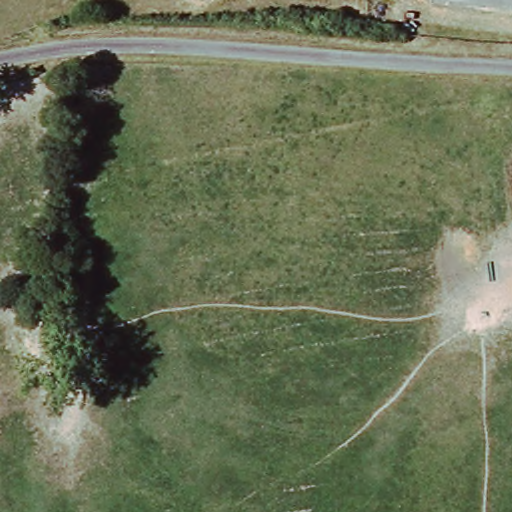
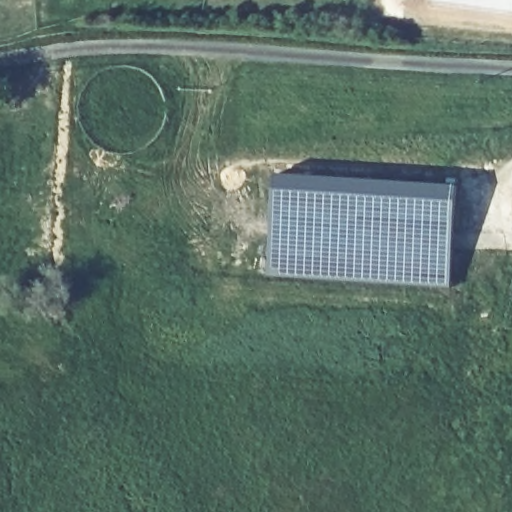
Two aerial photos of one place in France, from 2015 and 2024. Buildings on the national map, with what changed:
unchanged [(512,0),(512,4),(480,0),(512,0)]
new [(277,174),(459,185),(453,283),(271,273),(277,174)]

